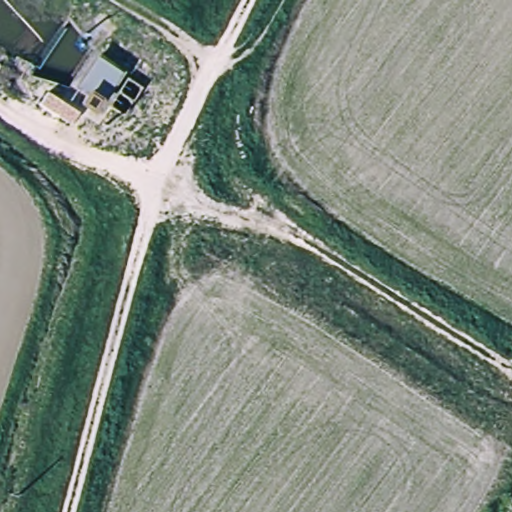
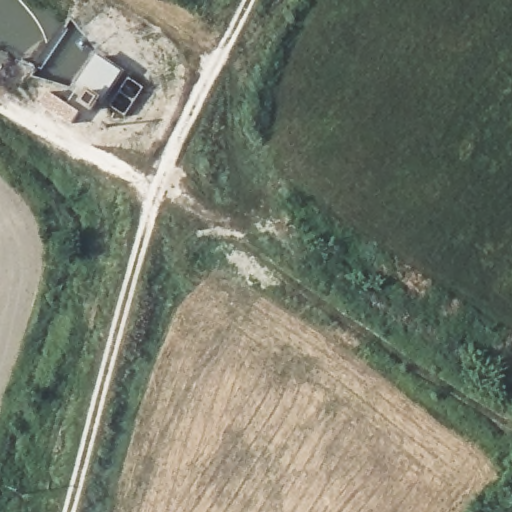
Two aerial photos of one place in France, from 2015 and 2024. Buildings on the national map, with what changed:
unchanged [(101,100),(81,89),(99,57),(122,69),(101,100)]

